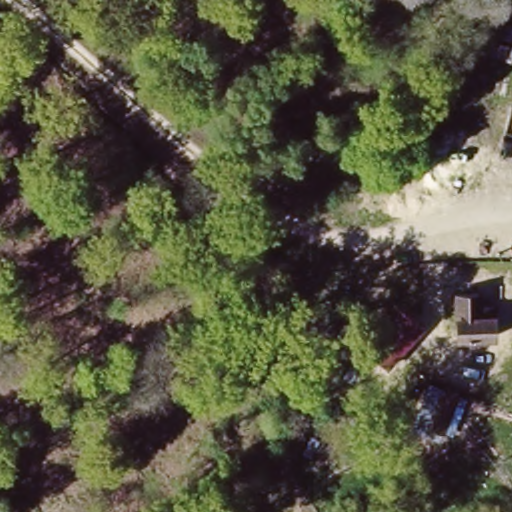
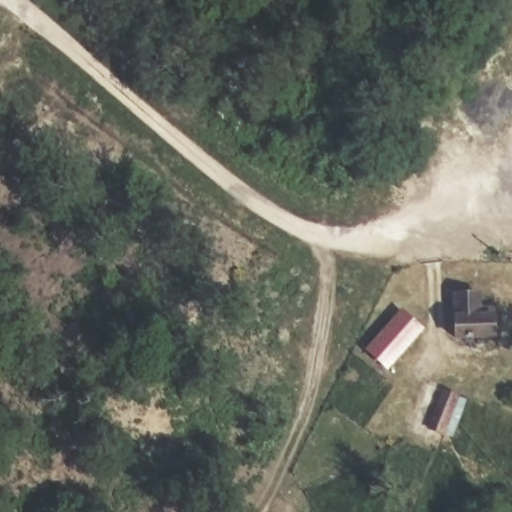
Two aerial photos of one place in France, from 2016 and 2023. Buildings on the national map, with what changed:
unchanged [(485,318),(491,318),(490,326),(501,326),(501,347),(461,347),(461,304),(485,304),(485,318)]
unchanged [(394,363),(374,348),(400,313),(420,328),(394,363)]
unchanged [(463,397),(449,434),(433,427),(447,391),(463,397)]

